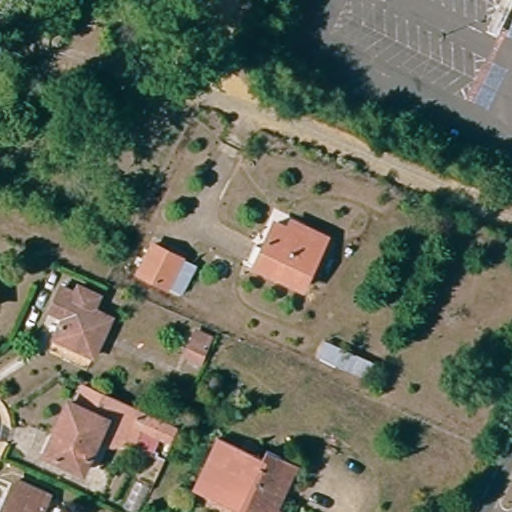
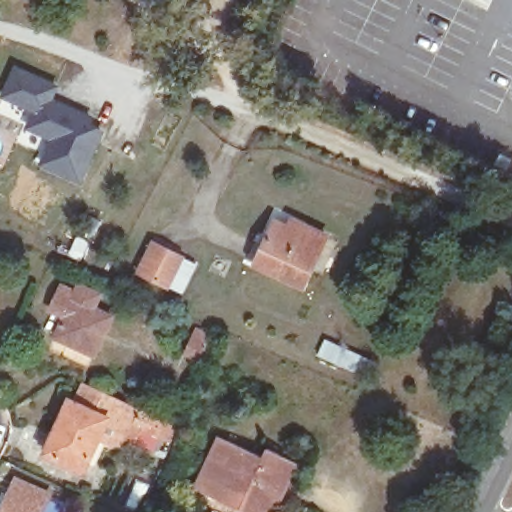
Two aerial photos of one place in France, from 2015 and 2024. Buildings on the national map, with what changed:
new [(53,90),(47,103),(58,110),(86,124),(82,131),(96,139),(70,186),(34,166),(47,141),(23,129),(31,112),(0,95),(15,69),(53,90)]
unchanged [(255,264),(274,217),(288,224),(295,227),(301,218),(324,227),(300,284),(255,264)]
unchanged [(205,264),(191,293),(139,267),(156,232),(205,264)]
unchanged [(99,353),(94,355),(60,339),(64,327),(50,319),(67,285),(82,291),(79,300),(115,316),(99,353)]
unchanged [(1,303),(0,303),(0,286),(1,303)]
unchanged [(203,355),(185,347),(197,320),(214,327),(203,355)]
unchanged [(120,424),(110,445),(88,435),(74,465),(38,448),(63,395),(69,396),(77,377),(132,400),(120,424)]
unchanged [(166,432),(153,427),(149,436),(120,424),(132,400),(173,418),(166,432)]
unchanged [(193,488),(218,435),(261,456),(265,447),(295,461),(272,512),(243,512),(193,488)]
unchanged [(13,476),(46,491),(38,512),(0,512),(0,506),(13,476)]

